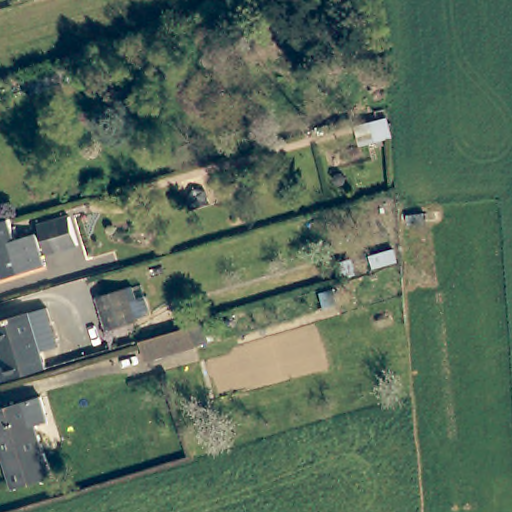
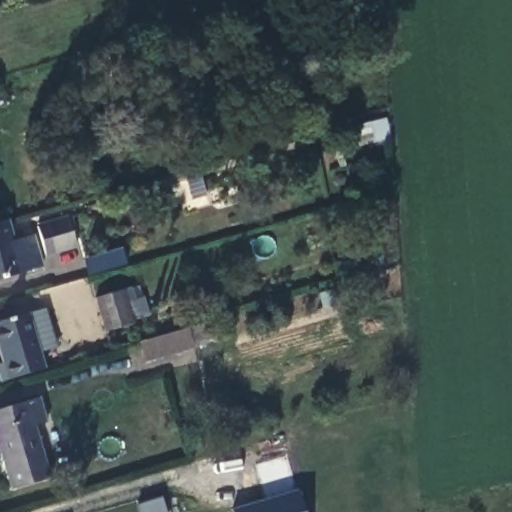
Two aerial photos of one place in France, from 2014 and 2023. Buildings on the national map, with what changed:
unchanged [(355,125),(370,121),(379,118),(385,137),(376,140),(361,144),(355,125)]
unchanged [(41,265),(0,277),(0,221),(9,218),(16,239),(34,235),(41,265)]
unchanged [(75,243),(45,252),(39,226),(69,218),(75,243)]
unchanged [(104,328),(96,294),(126,288),(135,319),(104,328)]
unchanged [(0,381),(0,364),(3,363),(0,351),(0,318),(30,310),(47,306),(57,346),(40,350),(45,367),(0,381)]
unchanged [(195,326),(200,343),(154,356),(150,339),(195,326)]
unchanged [(55,472),(16,481),(0,422),(0,405),(32,394),(55,472)]
new [(297,490),(304,512),(235,512),(234,508),(297,490)]

